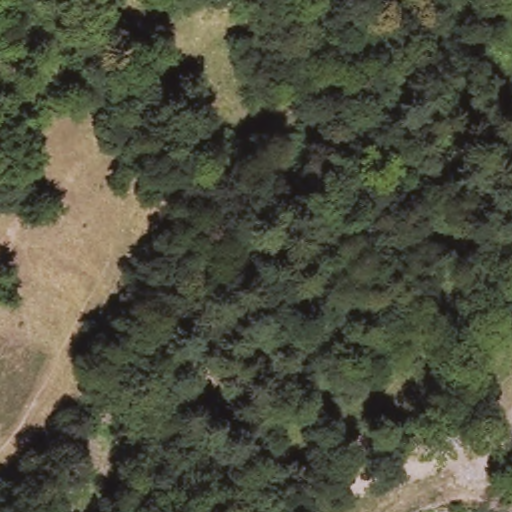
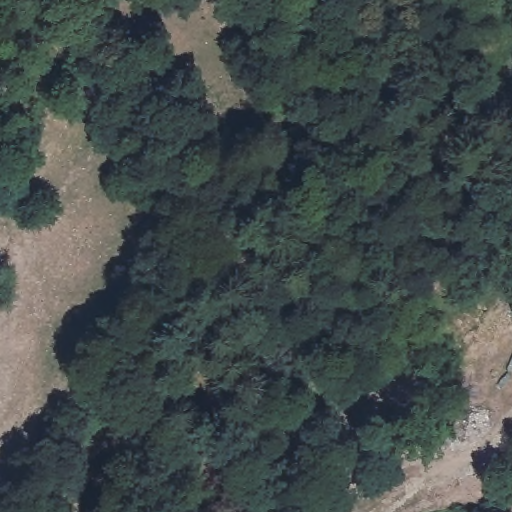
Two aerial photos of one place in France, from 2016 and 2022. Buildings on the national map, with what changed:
[]

